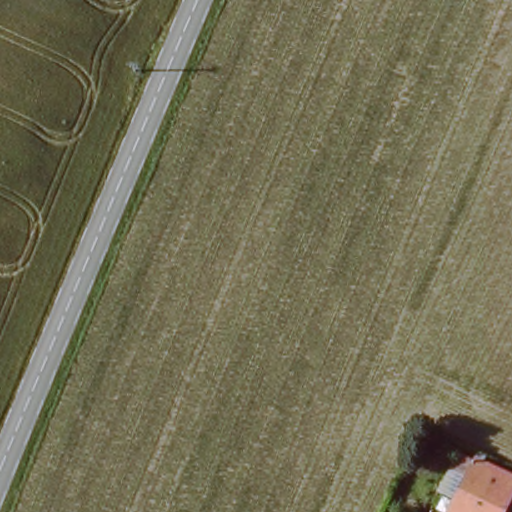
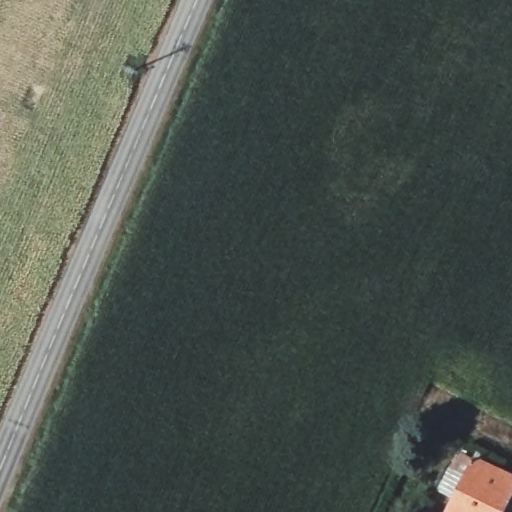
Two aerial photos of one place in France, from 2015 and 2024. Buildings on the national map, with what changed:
unchanged [(457,495),(444,487),(461,449),(475,456),(479,450),(489,457),(485,462),(495,468),(472,512),(448,512),(457,495)]
unchanged [(512,477),(512,508),(509,507),(506,512),(472,512),(495,468),(512,477)]

